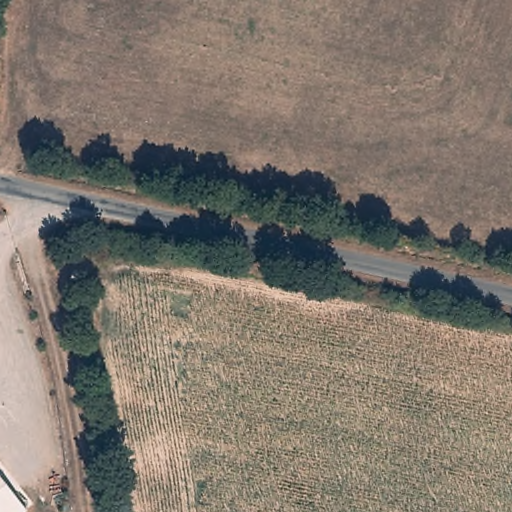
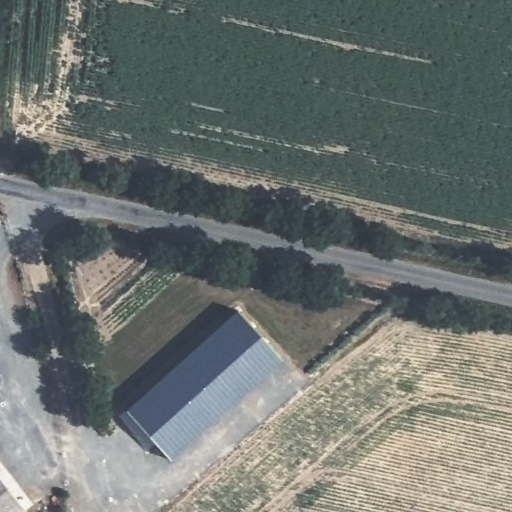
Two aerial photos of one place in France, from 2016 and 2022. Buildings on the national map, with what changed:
new [(236,309),(282,359),(170,459),(126,409),(236,309)]
unchanged [(0,512),(0,479),(13,493),(26,510),(23,512),(0,512)]

